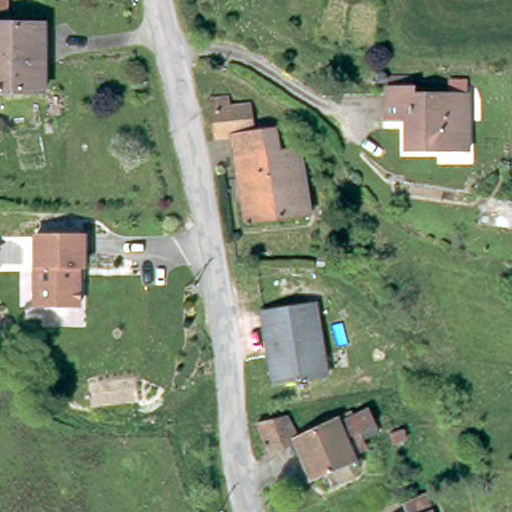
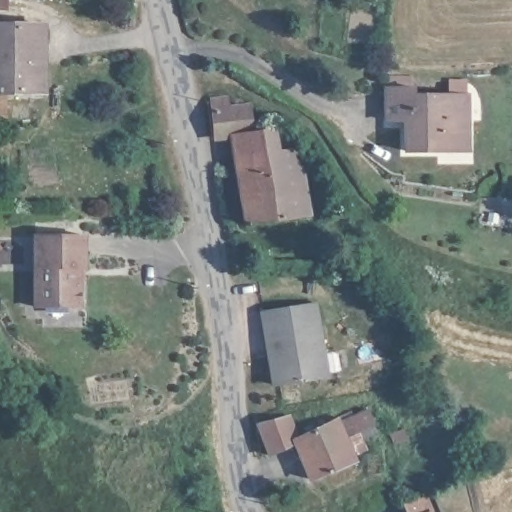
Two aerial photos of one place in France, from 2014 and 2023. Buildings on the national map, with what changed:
unchanged [(0,86),(0,0),(8,0),(8,20),(44,20),(42,87),(0,86)]
unchanged [(412,91),(466,90),(466,138),(443,138),(443,148),(404,147),(404,125),(412,125),(412,115),(384,116),(384,84),(387,84),(387,72),(411,72),(410,84),(412,84),(412,91)]
unchanged [(229,110),(248,108),(252,133),(274,130),(277,152),(297,150),(307,215),(245,223),(232,137),(215,139),(211,99),(227,98),(229,110)]
unchanged [(85,266),(82,266),(81,306),(37,305),(39,233),(86,234),(85,266)]
unchanged [(314,299),(323,374),(272,380),(262,306),(314,299)]
unchanged [(269,448),(257,418),(285,410),(296,433),(337,414),(354,456),(311,474),(300,449),(293,451),(289,440),(269,448)]
unchanged [(439,512),(405,512),(412,509),(407,498),(430,490),(439,512)]

